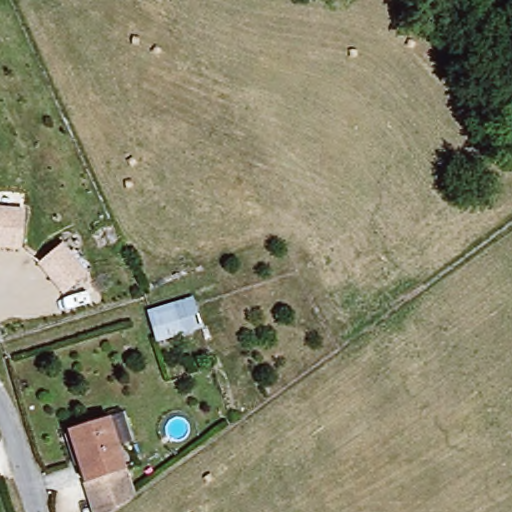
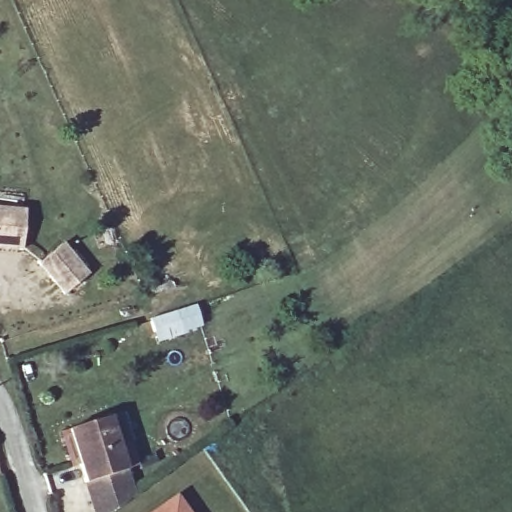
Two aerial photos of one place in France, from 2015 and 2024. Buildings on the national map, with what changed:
unchanged [(0,249),(0,211),(15,212),(10,250),(0,249)]
unchanged [(54,296),(29,265),(53,246),(78,277),(54,296)]
unchanged [(183,319),(187,333),(159,342),(149,310),(216,289),(223,307),(183,319)]
unchanged [(74,435),(93,431),(120,426),(136,494),(136,495),(118,508),(113,512),(89,512),(74,435)]
new [(175,493),(189,512),(147,512),(175,493)]

